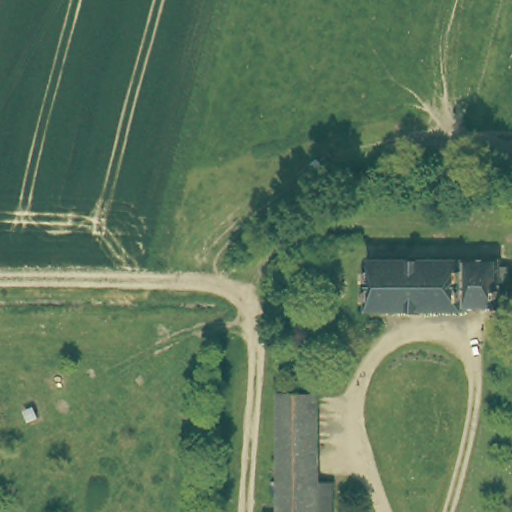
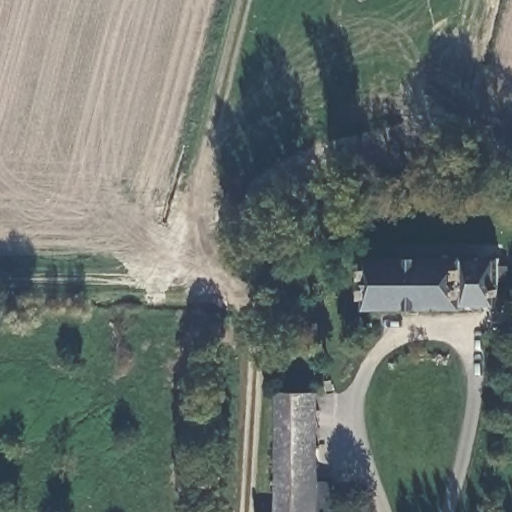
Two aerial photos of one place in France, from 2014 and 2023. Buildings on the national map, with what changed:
unchanged [(462,307),(372,307),(372,257),(503,255),(505,304),(464,303),(462,307)]
unchanged [(286,396),(322,395),(322,512),(284,512),(283,483),(286,396)]
unchanged [(283,483),(284,512),(270,512),(270,484),(283,483)]

